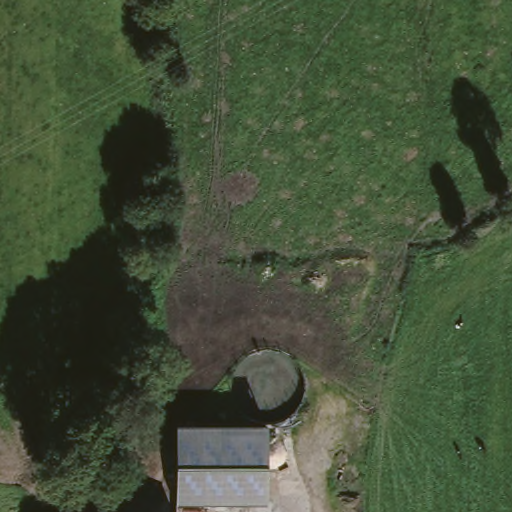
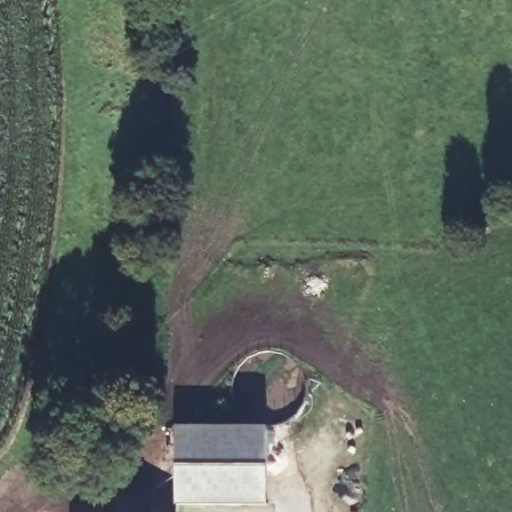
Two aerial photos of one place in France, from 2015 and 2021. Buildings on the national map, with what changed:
unchanged [(173,432),(265,431),(262,510),(170,509),(173,432)]

